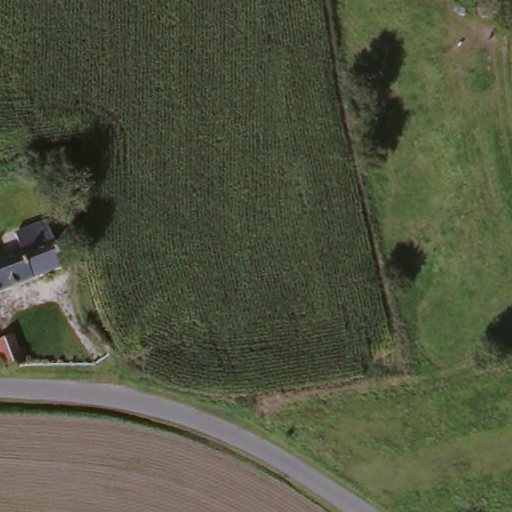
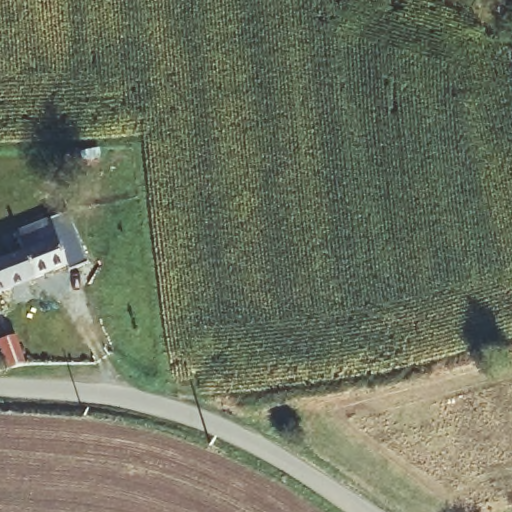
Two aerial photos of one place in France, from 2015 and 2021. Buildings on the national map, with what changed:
unchanged [(8,296),(0,274),(0,265),(4,262),(21,258),(14,237),(46,228),(53,248),(63,276),(8,296)]
unchanged [(8,296),(0,300),(0,274),(8,296)]
unchanged [(2,376),(0,370),(0,341),(13,337),(23,370),(2,376)]

